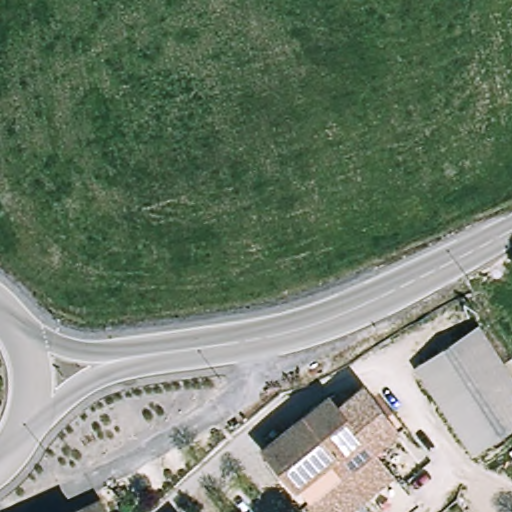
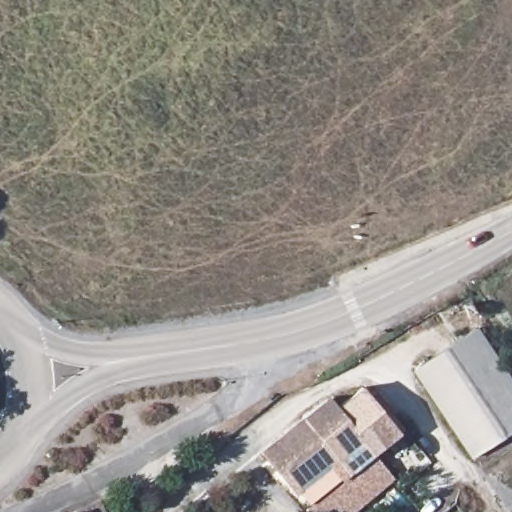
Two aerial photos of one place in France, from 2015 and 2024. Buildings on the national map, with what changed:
unchanged [(474,334),(512,393),(512,433),(472,459),(414,371),(474,334)]
unchanged [(389,471),(337,512),(310,512),(257,444),(324,391),(331,399),(357,379),(390,422),(365,441),(389,471)]
unchanged [(100,512),(72,512),(94,501),(100,512)]

